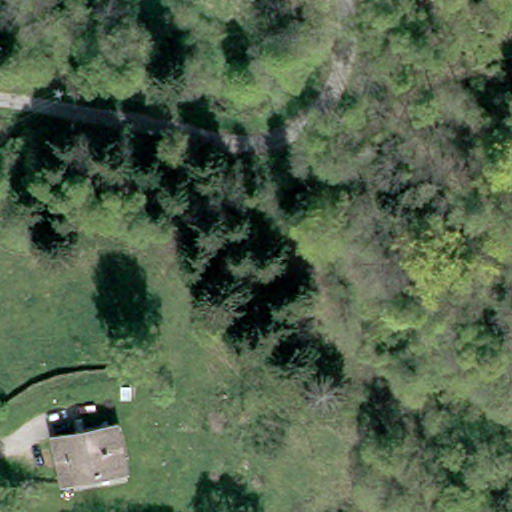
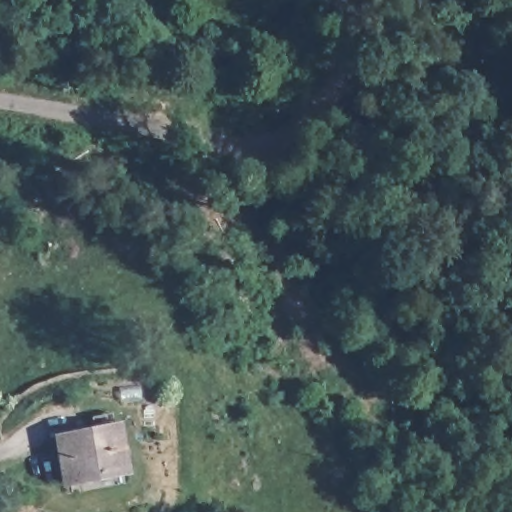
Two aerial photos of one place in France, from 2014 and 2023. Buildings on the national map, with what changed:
unchanged [(49,483),(40,431),(122,422),(130,470),(49,483)]

